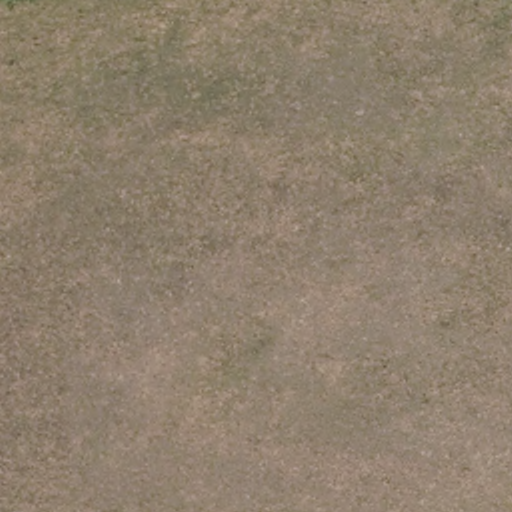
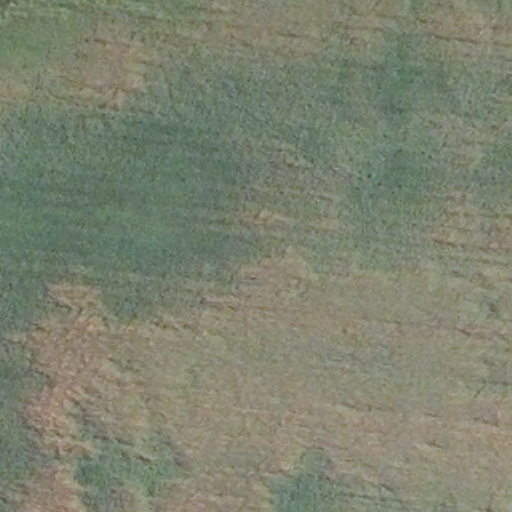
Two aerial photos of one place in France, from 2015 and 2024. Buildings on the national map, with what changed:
[]

